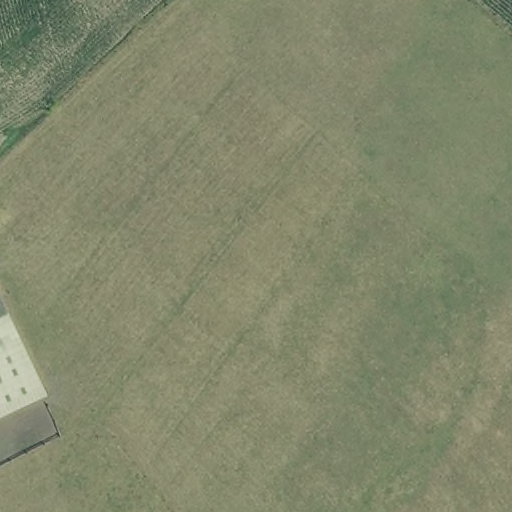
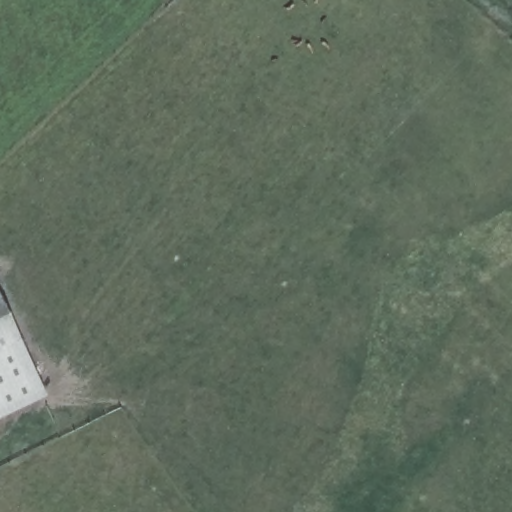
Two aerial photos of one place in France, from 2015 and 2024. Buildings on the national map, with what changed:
unchanged [(2,365),(0,365),(0,305),(22,356),(2,365)]
unchanged [(0,419),(0,365),(2,365),(22,356),(42,397),(0,419)]

